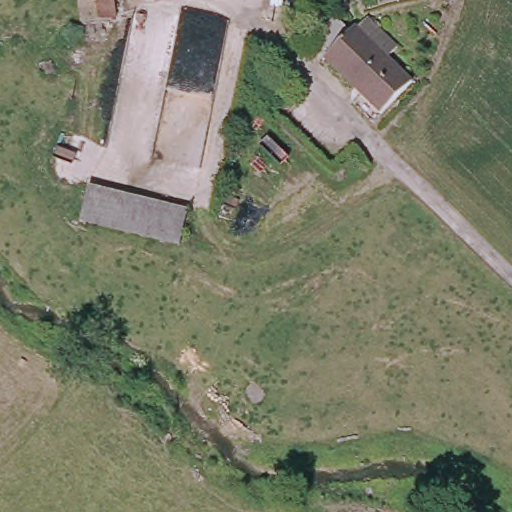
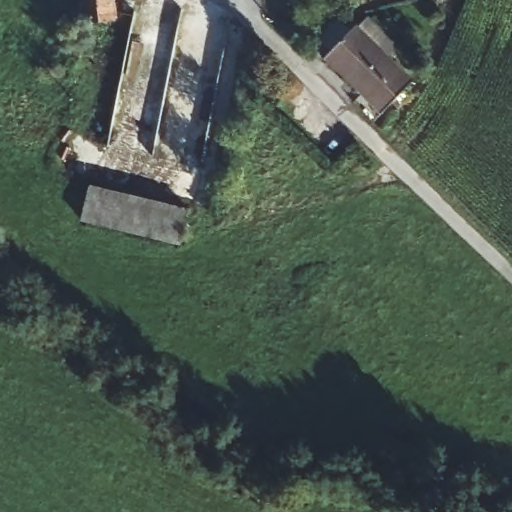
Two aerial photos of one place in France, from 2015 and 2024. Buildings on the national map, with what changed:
unchanged [(115,6),(116,11),(89,16),(86,0),(113,0),(115,6)]
unchanged [(359,29),(363,33),(376,20),(404,48),(390,62),(412,85),(379,119),(324,64),(359,29)]
unchanged [(85,229),(92,186),(191,209),(184,250),(85,229)]

